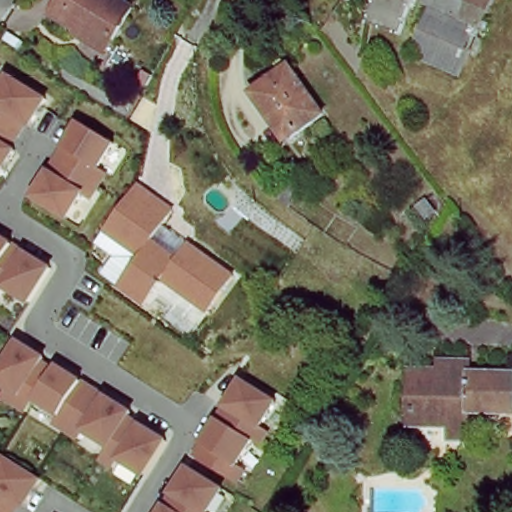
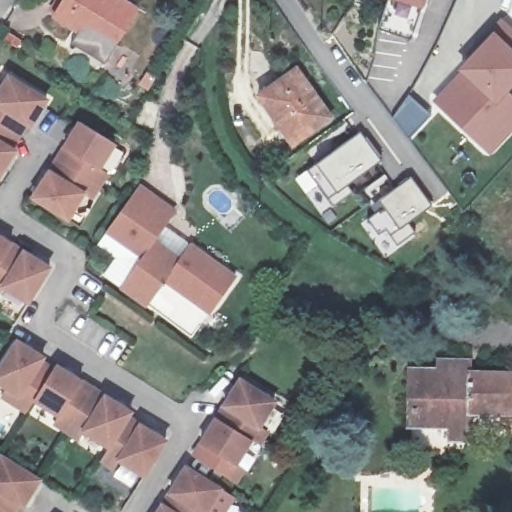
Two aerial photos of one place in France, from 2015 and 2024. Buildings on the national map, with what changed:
unchanged [(74,35),(79,27),(58,13),(67,0),(117,0),(133,10),(113,43),(106,54),(74,35)]
unchanged [(419,2),(409,43),(379,34),(388,0),(419,0),(419,2)]
demolished [(491,19),(461,79),(413,56),(436,13),(428,10),(433,0),(453,0),(460,3),(491,19)]
new [(512,28),(512,132),(489,155),(432,100),(458,68),(488,37),(484,33),(502,18),(512,28)]
unchanged [(298,69),(331,117),(294,144),(259,95),(298,69)]
unchanged [(16,84),(53,107),(38,132),(38,133),(33,130),(28,139),(26,142),(0,126),(0,108),(1,109),(16,84)]
new [(432,117),(411,141),(393,119),(411,97),(432,117)]
unchanged [(117,145),(101,170),(103,171),(109,175),(101,188),(94,184),(59,162),(64,153),(68,149),(83,124),(117,145)]
unchanged [(18,154),(23,157),(6,183),(0,179),(0,126),(26,142),(18,154)]
new [(363,133),(383,162),(379,165),(397,190),(414,178),(432,207),(410,224),(417,234),(399,246),(389,229),(380,235),(369,220),(384,208),(380,201),(373,207),(356,182),(350,187),(354,194),(336,208),(309,171),(363,133)]
unchanged [(94,184),(101,188),(93,201),(86,196),(85,195),(70,219),(36,198),(52,173),(53,172),(55,169),(59,162),(94,184)]
unchanged [(161,228),(187,247),(232,280),(206,315),(161,283),(143,307),(118,289),(139,259),(103,233),(124,205),(136,188),(171,214),(161,228)]
unchanged [(139,259),(118,289),(101,277),(113,260),(94,246),(103,233),(139,259)]
unchanged [(0,267),(0,238),(13,246),(0,267)]
unchanged [(51,270),(43,283),(30,303),(21,298),(5,288),(0,296),(0,267),(13,246),(43,265),(51,270)]
unchanged [(42,363),(54,371),(35,401),(28,413),(14,405),(20,396),(0,384),(0,373),(18,343),(44,359),(42,363)]
unchanged [(413,367),(436,369),(438,355),(472,356),(471,370),(512,373),(512,407),(470,405),(469,422),(459,421),(409,419),(413,367)]
unchanged [(55,369),(56,367),(91,389),(94,391),(68,433),(55,425),(60,416),(35,401),(54,371),(55,369)]
unchanged [(223,414),(231,403),(246,379),(280,399),(264,424),(273,429),(264,442),(256,437),(244,430),(223,416),(223,414)]
unchanged [(127,412),(131,414),(128,419),(110,448),(85,433),(80,441),(68,433),(94,391),(127,412)]
unchanged [(220,420),(223,416),(244,430),(256,437),(256,438),(241,462),(249,467),(241,480),(220,467),(201,455),(198,454),(220,420)]
unchanged [(166,443),(145,477),(120,461),(115,470),(102,461),(110,448),(128,419),(166,443)]
unchanged [(19,505),(15,512),(4,512),(0,510),(0,462),(3,458),(38,480),(39,481),(23,507),(19,505)]
unchanged [(186,470),(201,479),(208,483),(221,491),(207,512),(169,512),(163,508),(173,491),(186,470)]
unchanged [(169,512),(160,512),(163,508),(169,512)]
unchanged [(0,512),(0,510),(4,512),(0,512)]

